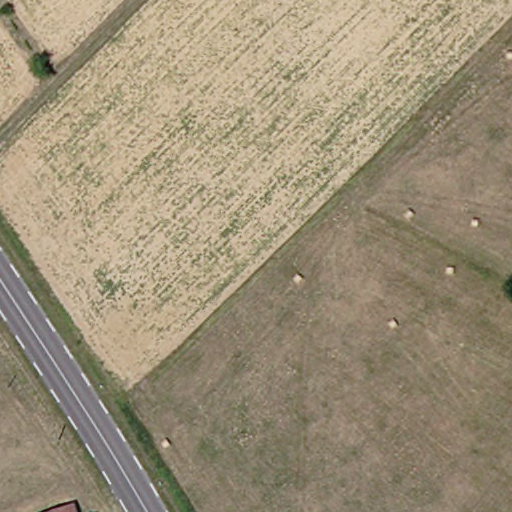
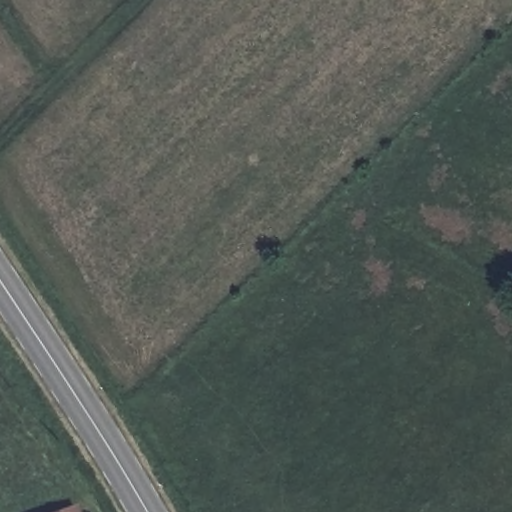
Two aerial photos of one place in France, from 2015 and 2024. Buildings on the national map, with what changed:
unchanged [(78,506),(79,512),(59,512),(78,506)]

